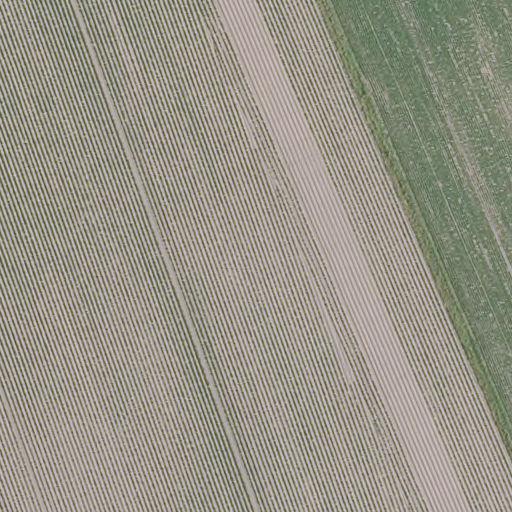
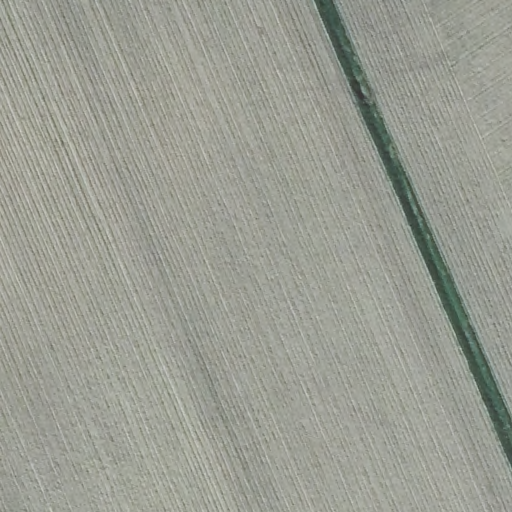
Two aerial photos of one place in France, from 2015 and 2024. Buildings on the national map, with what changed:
[]

